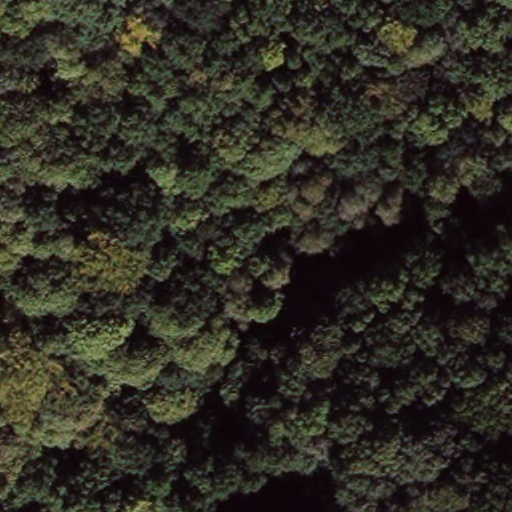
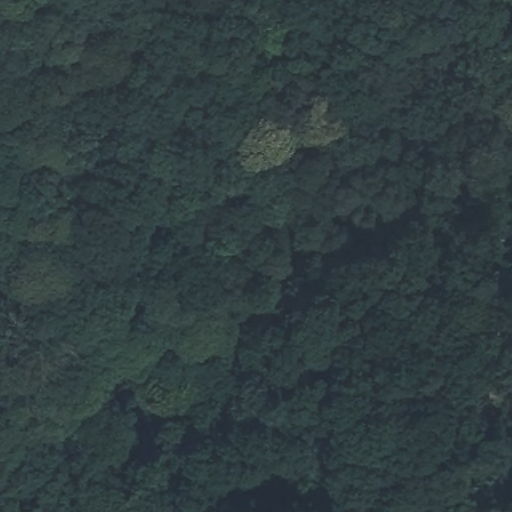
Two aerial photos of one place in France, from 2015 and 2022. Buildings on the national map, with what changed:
[]

